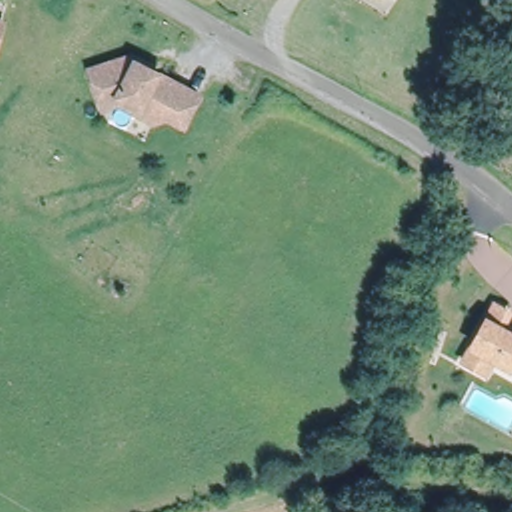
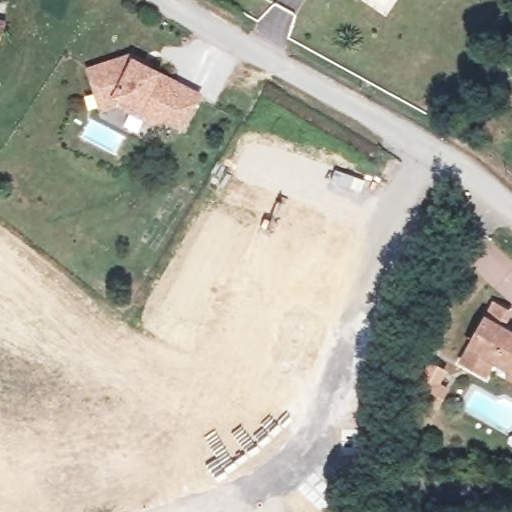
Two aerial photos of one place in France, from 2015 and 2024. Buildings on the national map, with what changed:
unchanged [(2,30),(0,37),(0,29),(2,30)]
unchanged [(129,107),(113,100),(98,105),(96,99),(85,65),(127,51),(145,60),(143,64),(194,90),(178,122),(162,113),(149,118),(129,107)]
unchanged [(505,370),(488,360),(480,375),(458,362),(490,305),(504,313),(498,325),(512,332),(512,363),(510,361),(505,370)]

